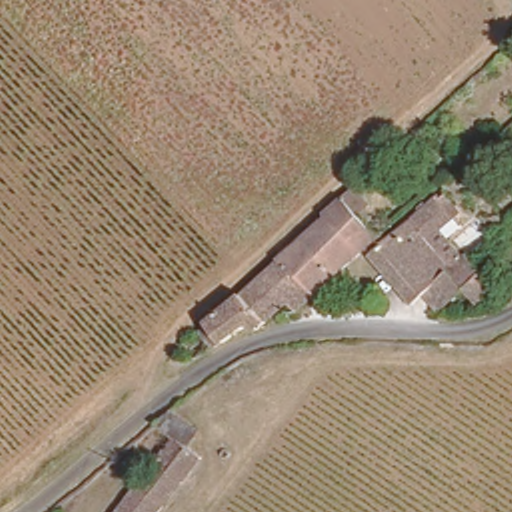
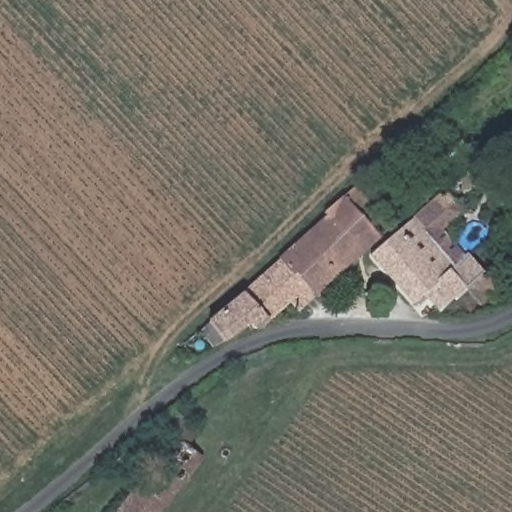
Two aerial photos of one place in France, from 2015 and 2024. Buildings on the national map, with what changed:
unchanged [(495,303),(488,298),(482,304),(466,288),(450,302),(449,303),(435,314),(430,308),(421,299),(417,302),(415,299),(396,277),(383,262),(374,251),(386,239),(398,228),(435,196),(440,192),(452,207),(427,228),(451,256),(454,260),(458,261),(468,252),(483,268),(485,272),(505,294),(495,303)]
unchanged [(285,254),(330,215),(328,213),(327,210),(345,193),(355,205),(382,233),(363,251),(362,249),(317,290),(285,254)]
unchanged [(285,254),(317,290),(300,305),(292,296),(268,269),(285,254)]
unchanged [(292,296),(255,327),(248,320),(224,337),(207,318),(246,284),(255,278),(257,279),(268,269),(292,296)]
unchanged [(197,433),(190,443),(201,454),(157,512),(116,512),(140,481),(143,483),(160,462),(157,459),(175,436),(155,420),(170,409),(197,433)]

